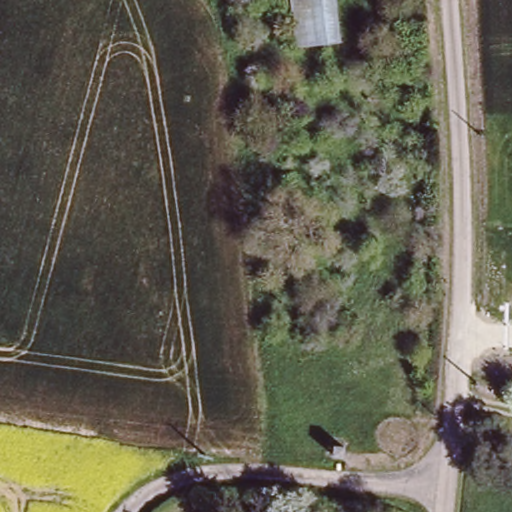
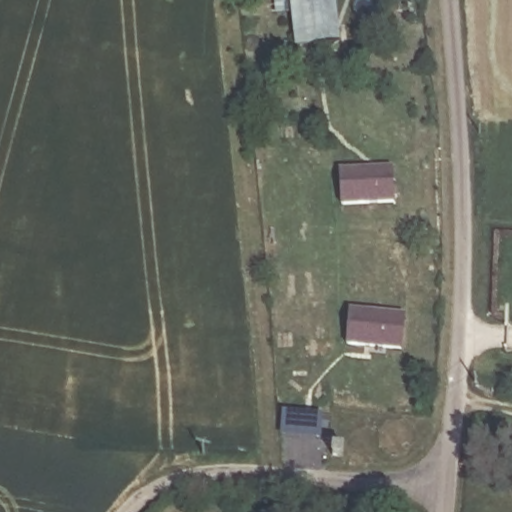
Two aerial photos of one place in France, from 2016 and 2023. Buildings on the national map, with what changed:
unchanged [(279,53),(275,0),(337,0),(342,46),(279,53)]
new [(340,168),(392,164),(396,202),(342,205),(340,168)]
new [(349,308),(405,312),(402,350),(347,344),(349,308)]

